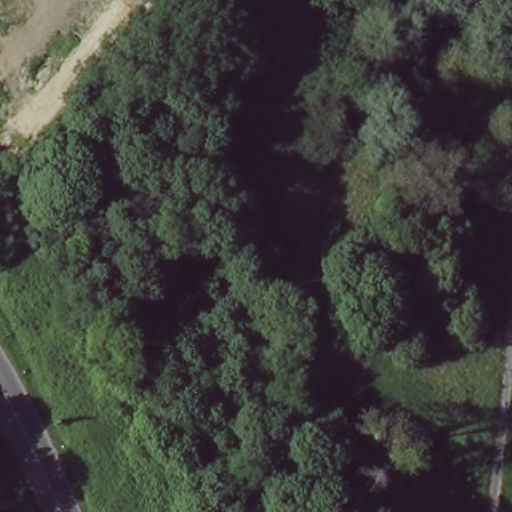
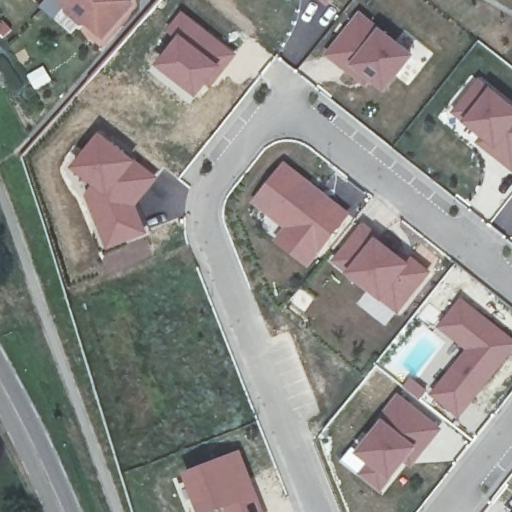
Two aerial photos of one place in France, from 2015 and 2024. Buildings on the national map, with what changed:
new [(132,4),(102,40),(85,25),(82,28),(63,11),(66,9),(57,0),(128,0),(132,4)]
new [(327,2),(325,0),(329,0),(327,2)]
new [(173,37),(164,29),(180,9),(236,53),(198,98),(152,63),(173,37)]
new [(360,10),(413,53),(383,91),(367,78),(362,85),(324,54),(360,10)]
new [(512,173),(476,146),(482,137),(450,111),(477,77),(512,105),(512,173)]
new [(98,129),(159,177),(137,204),(148,233),(105,250),(83,192),(91,185),(69,165),(98,129)]
new [(350,214),(306,269),(274,241),(283,228),(249,202),(283,161),(350,214)]
new [(363,225),(380,239),(378,241),(406,263),(410,258),(427,272),(397,308),(336,260),(363,225)]
new [(512,352),(459,418),(428,394),(465,349),(436,326),(460,296),(512,338),(512,352)]
new [(441,428),(411,466),(404,461),(380,492),(357,473),(365,464),(351,452),(396,393),(441,428)]
new [(265,512),(226,512),(224,508),(211,512),(197,512),(182,471),(241,449),(265,512)]

